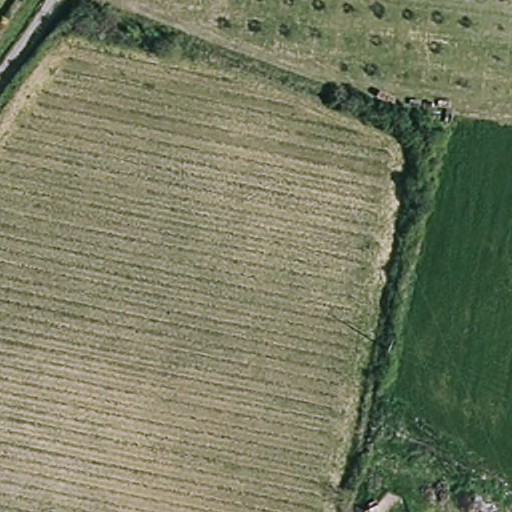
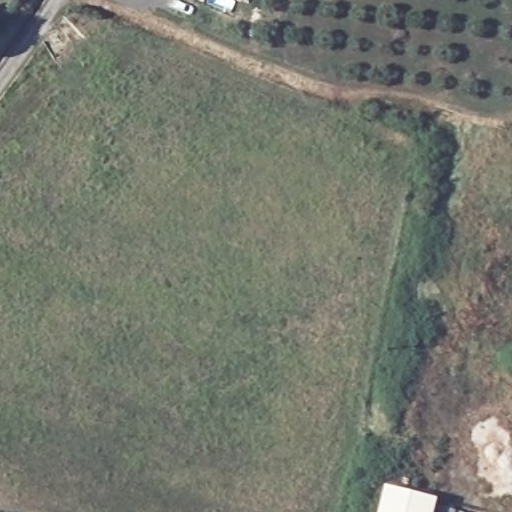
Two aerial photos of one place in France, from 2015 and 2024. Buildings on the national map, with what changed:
new [(434,512),(379,512),(385,487),(437,499),(434,512)]

